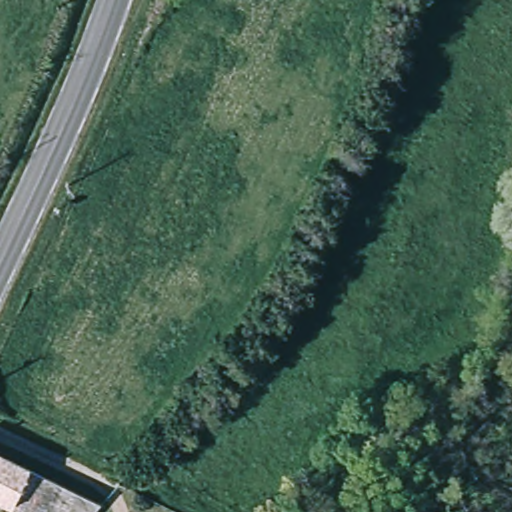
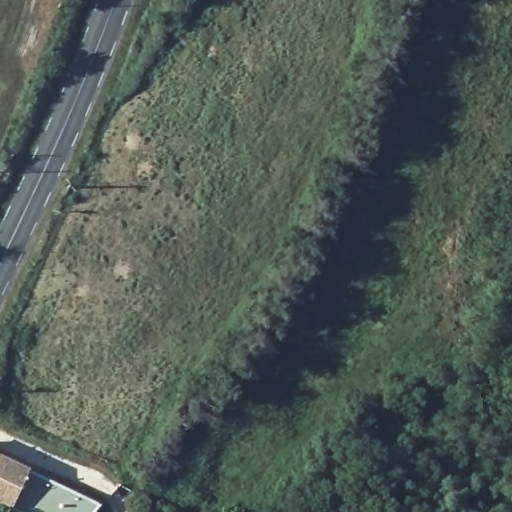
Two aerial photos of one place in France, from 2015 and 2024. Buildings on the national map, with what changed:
unchanged [(14,505),(0,498),(0,455),(33,471),(14,505)]
unchanged [(33,471),(102,504),(95,512),(27,512),(14,505),(33,471)]

